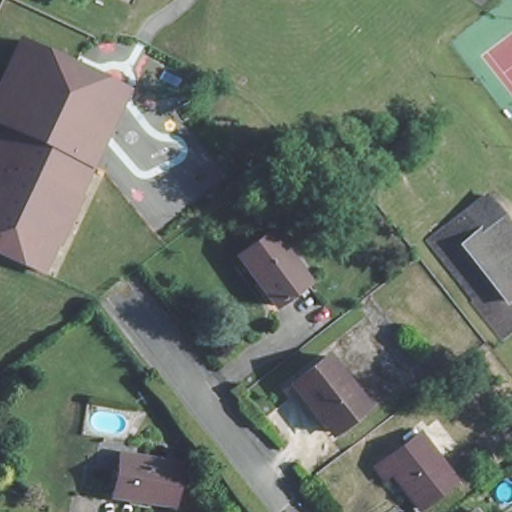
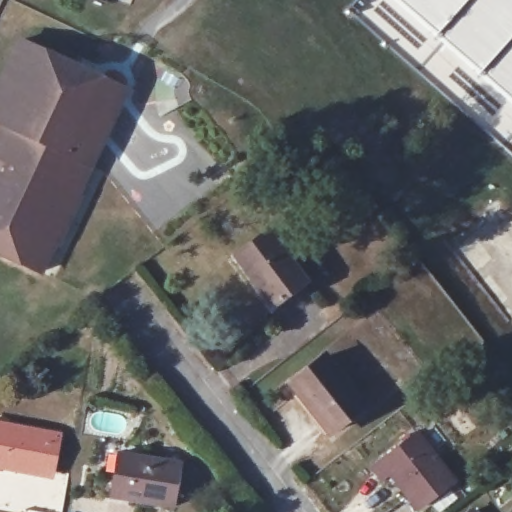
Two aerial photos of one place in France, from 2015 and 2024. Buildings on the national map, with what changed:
new [(505,141),(347,3),(349,0),(512,0),(512,135),(505,141)]
unchanged [(0,256),(0,54),(9,33),(127,87),(49,274),(0,256)]
demolished [(495,284),(508,302),(512,307),(512,332),(500,341),(470,303),(474,300),(427,239),(487,194),(512,228),(512,271),(495,284)]
unchanged [(303,279),(271,305),(233,257),(267,232),(303,279)]
unchanged [(365,399),(326,431),(288,384),(327,352),(365,399)]
new [(54,481),(0,471),(0,420),(63,432),(54,481)]
unchanged [(455,481),(420,509),(394,476),(387,479),(377,466),(419,433),(455,481)]
unchanged [(170,505),(108,491),(117,449),(179,464),(170,505)]
unchanged [(465,511),(465,512),(463,512),(465,511)]

